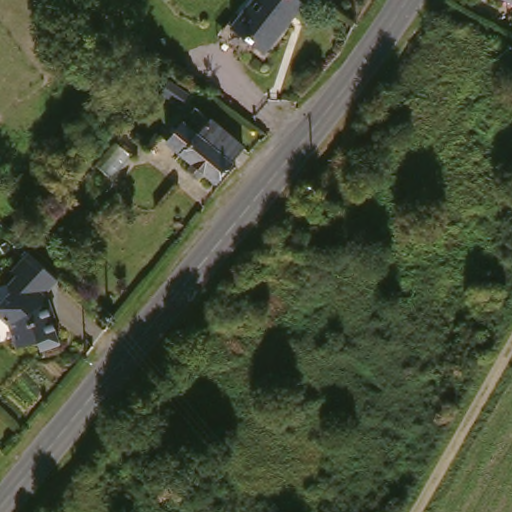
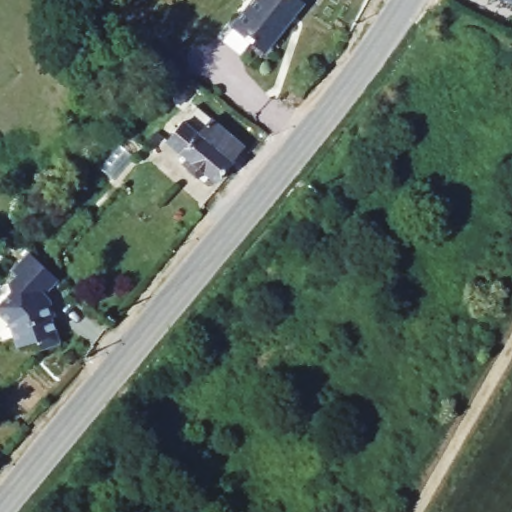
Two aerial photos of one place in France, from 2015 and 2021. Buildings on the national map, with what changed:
unchanged [(261,0),(308,0),(312,5),(271,53),(240,24),(261,0)]
unchanged [(508,0),(512,0),(512,2),(508,0)]
unchanged [(169,83),(189,94),(181,107),(161,94),(169,83)]
unchanged [(236,155),(227,168),(230,171),(216,190),(204,181),(197,191),(187,184),(194,174),(180,163),(184,157),(167,144),(187,118),(236,155)]
unchanged [(47,299),(56,345),(36,349),(34,339),(12,344),(7,320),(0,313),(0,297),(8,288),(7,282),(16,272),(11,268),(27,250),(31,253),(60,278),(44,296),(47,299)]

